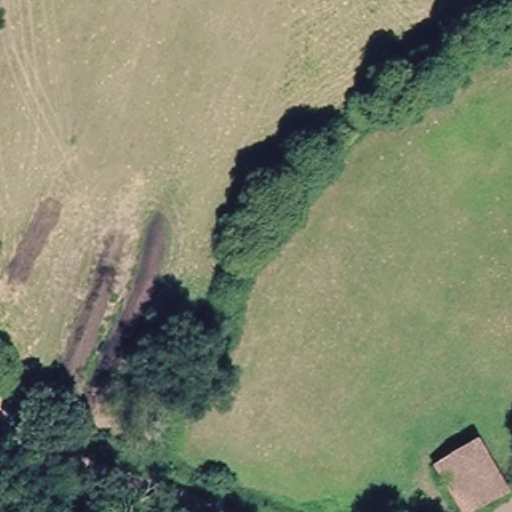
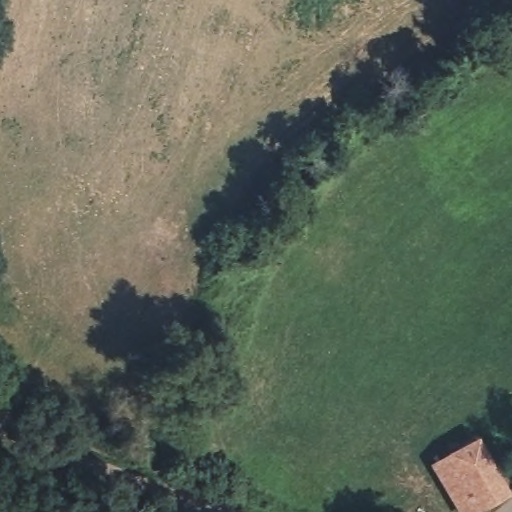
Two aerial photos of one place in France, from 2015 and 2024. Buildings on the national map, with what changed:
unchanged [(504,491),(474,512),(460,512),(459,511),(453,501),(434,469),(471,444),(497,479),(507,473),(512,481),(512,486),(504,491)]

